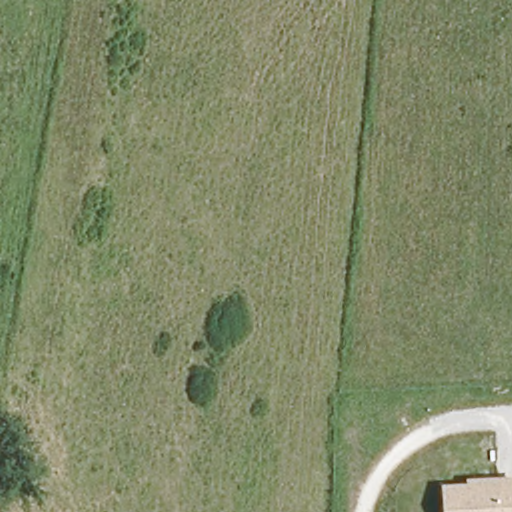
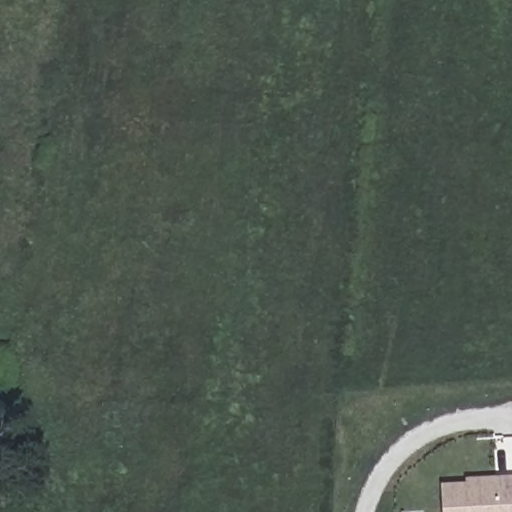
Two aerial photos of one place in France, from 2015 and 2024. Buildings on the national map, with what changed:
unchanged [(468,483),(468,477),(512,476),(512,512),(442,512),(441,485),(468,483)]

